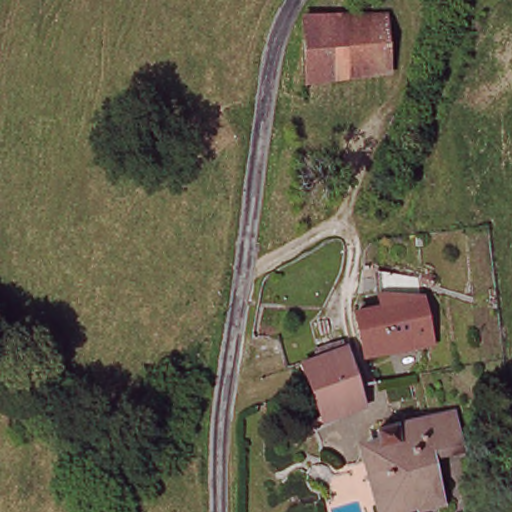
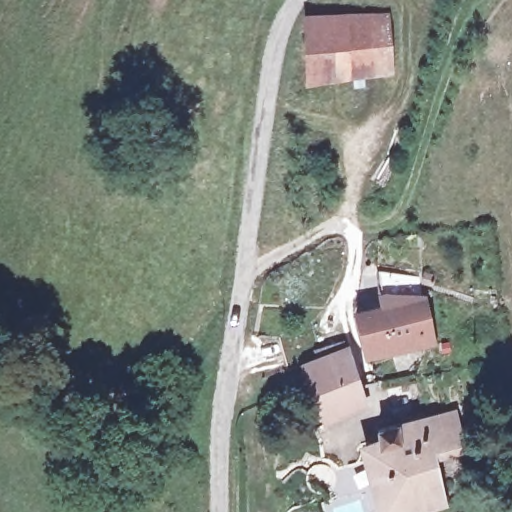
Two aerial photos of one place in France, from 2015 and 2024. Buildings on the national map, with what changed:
unchanged [(298,86),(294,22),(337,22),(340,86),(298,86)]
unchanged [(381,23),(382,85),(340,86),(337,22),(381,23)]
unchanged [(427,288),(431,335),(413,338),(416,357),(360,367),(351,329),(380,325),(378,304),(382,304),(380,286),(427,288)]
unchanged [(351,405),(355,423),(311,437),(296,383),(343,367),(351,405)]
unchanged [(435,462),(444,507),(420,512),(386,512),(371,458),(388,452),(383,433),(457,417),(465,455),(435,462)]

